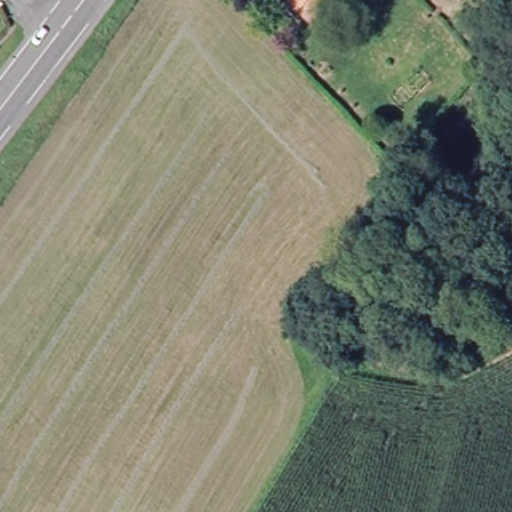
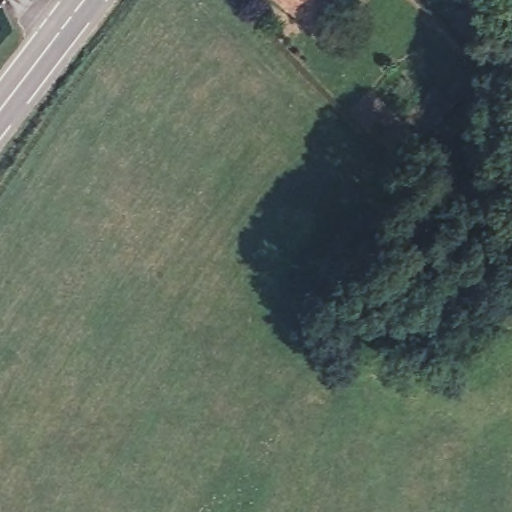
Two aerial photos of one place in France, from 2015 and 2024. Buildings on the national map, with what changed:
unchanged [(302,12),(289,0),(313,0),(302,12)]

